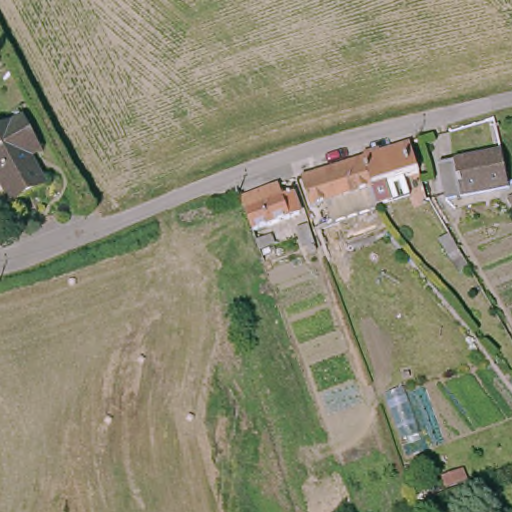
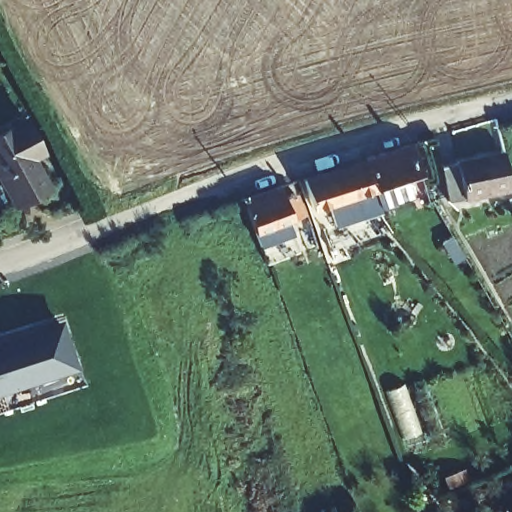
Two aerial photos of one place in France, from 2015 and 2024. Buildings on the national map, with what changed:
unchanged [(22,116),(38,146),(28,152),(45,182),(12,201),(0,179),(0,127),(22,116)]
unchanged [(428,161),(413,166),(420,186),(388,196),(382,176),(380,177),(372,148),(420,132),(428,161)]
unchanged [(342,214),(337,202),(335,194),(319,201),(308,168),(372,148),(380,177),(381,180),(377,181),(380,189),(384,199),(342,214)]
unchanged [(437,165),(499,148),(501,156),(505,172),(508,184),(447,201),(440,177),(437,165)]
unchanged [(272,176),(275,186),(285,183),(293,207),(247,223),(233,186),(272,176)]
unchanged [(314,210),(320,227),(307,232),(302,217),(300,211),(312,206),(314,210)]
unchanged [(250,231),(265,226),(269,236),(253,242),(250,231)]
new [(64,335),(77,377),(0,401),(0,354),(64,335)]

